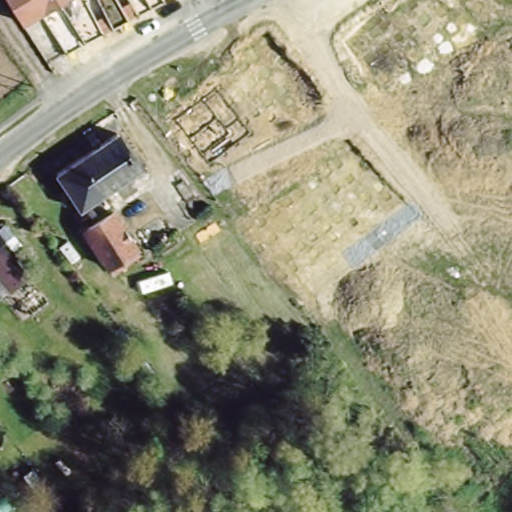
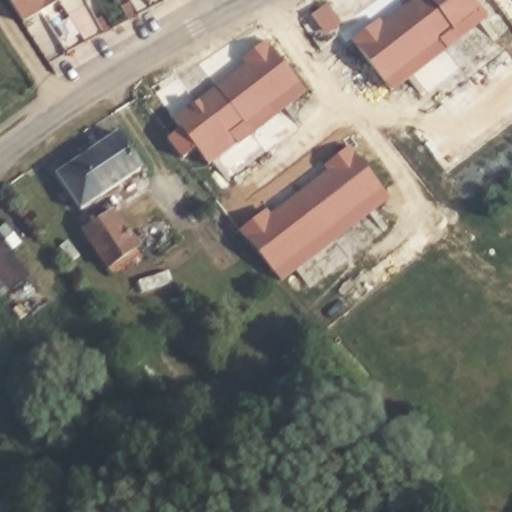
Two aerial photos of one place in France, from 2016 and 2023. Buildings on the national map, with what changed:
unchanged [(8,0),(57,0),(20,22),(8,0)]
new [(143,15),(136,0),(171,0),(171,2),(143,15)]
new [(439,40),(447,51),(393,92),(351,41),(377,20),(381,24),(410,4),(409,2),(411,0),(476,0),(482,7),(439,40)]
unchanged [(80,52),(65,24),(95,9),(107,37),(80,52)]
new [(250,136),(246,130),(233,139),(236,144),(208,165),(197,150),(180,162),(163,141),(180,128),(172,119),(201,100),(199,97),(243,64),(240,61),(267,41),(308,91),(250,136)]
unchanged [(139,170),(101,193),(100,192),(76,207),(55,172),(77,159),(75,156),(115,131),(139,170)]
new [(280,281),(273,272),(250,244),(245,247),(235,233),(265,210),(270,214),(326,172),(322,166),(350,145),(389,196),(280,281)]
unchanged [(107,267),(87,238),(116,219),(135,249),(107,267)]
unchanged [(13,249),(0,260),(0,233),(13,249)]
new [(10,252),(30,276),(0,299),(0,260),(10,252)]

